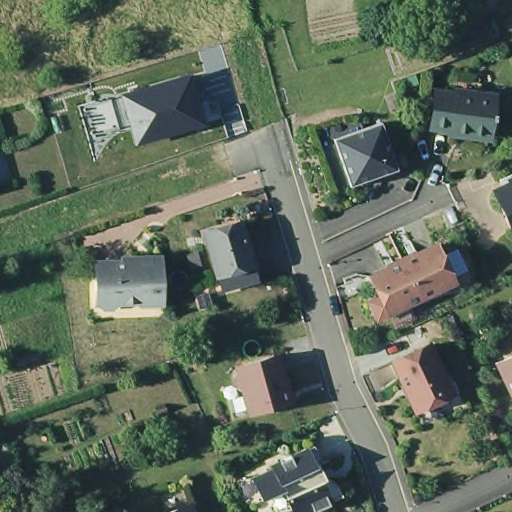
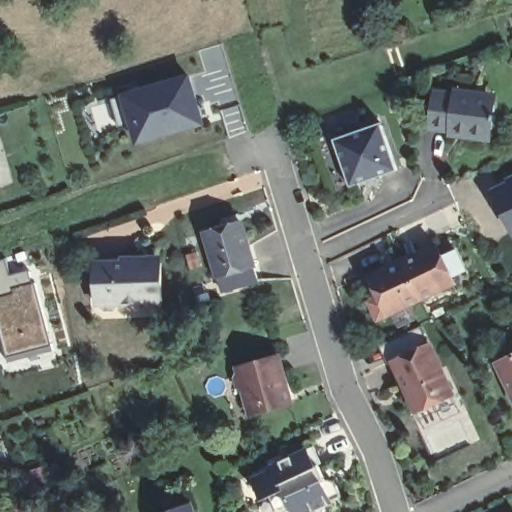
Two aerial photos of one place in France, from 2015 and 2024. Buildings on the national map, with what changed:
unchanged [(189,74),(205,126),(135,144),(131,128),(118,129),(110,98),(120,94),(189,74)]
unchanged [(454,98),(455,95),(494,100),(490,133),(450,128),(451,125),(431,122),(435,96),(454,98)]
unchanged [(353,138),(370,186),(355,191),(334,130),(364,119),(382,122),(384,128),(353,138)]
unchanged [(401,122),(417,169),(370,186),(353,138),(384,128),(401,122)]
unchanged [(512,187),(512,235),(494,195),(512,187)]
unchanged [(222,285),(217,270),(205,227),(220,222),(224,224),(242,219),(253,260),(258,274),(222,285)]
unchanged [(436,245),(454,282),(421,298),(403,260),(436,245)]
new [(5,258),(7,275),(29,269),(48,348),(0,357),(0,260),(5,258)]
unchanged [(118,261),(118,258),(133,258),(135,258),(136,260),(136,263),(144,263),(147,260),(155,260),(157,300),(134,301),(134,297),(116,298),(116,302),(110,307),(97,307),(92,303),(91,262),(118,261)]
unchanged [(368,299),(379,294),(370,276),(403,260),(421,298),(388,313),(377,319),(368,299)]
unchanged [(429,349),(452,398),(415,415),(393,366),(429,349)]
unchanged [(277,355),(290,402),(251,413),(244,390),(238,387),(235,376),(239,370),(237,366),(277,355)]
unchanged [(497,362),(512,355),(512,394),(497,362)]
unchanged [(341,502),(327,509),(328,510),(325,512),(272,512),(268,502),(261,505),(251,484),(271,475),(270,471),(306,455),(314,472),(317,470),(324,485),(328,485),(331,487),(334,489),(336,492),(341,502)]
unchanged [(191,509),(192,512),(183,512),(191,509)]

